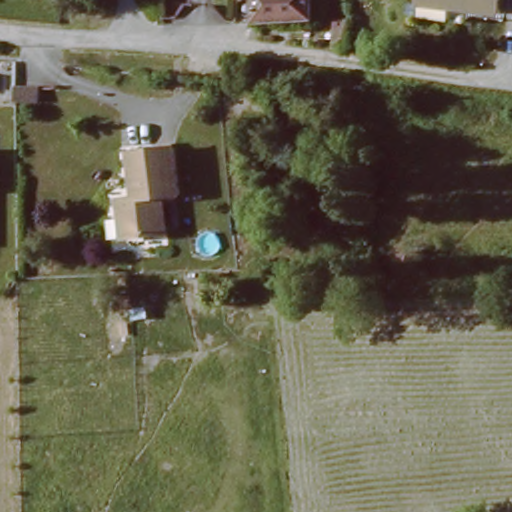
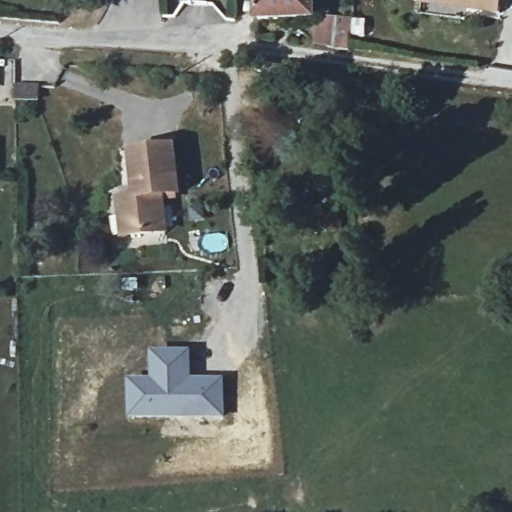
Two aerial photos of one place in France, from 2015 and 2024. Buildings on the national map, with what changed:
demolished [(63,6),(33,0),(65,0),(63,6)]
unchanged [(319,18),(262,17),(262,0),(318,0),(319,18)]
unchanged [(423,0),(504,0),(502,12),(423,1),(423,0)]
unchanged [(355,50),(338,48),(338,18),(355,19),(355,50)]
unchanged [(19,85),(41,85),(39,100),(19,100),(19,85)]
unchanged [(121,234),(117,197),(140,195),(135,147),(177,143),(181,191),(159,193),(163,230),(121,234)]
new [(151,378),(151,350),(192,350),(193,377),(226,377),(227,417),(129,421),(128,378),(151,378)]

